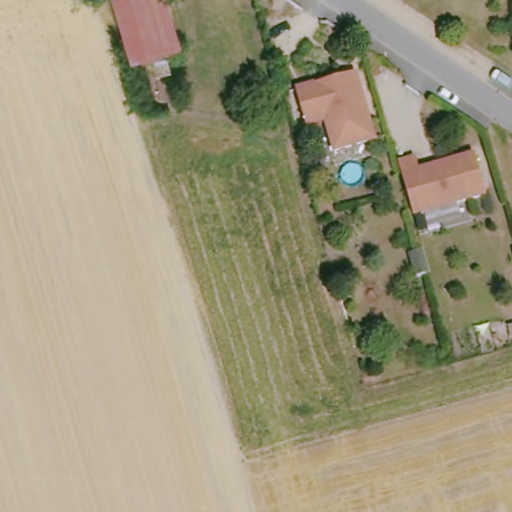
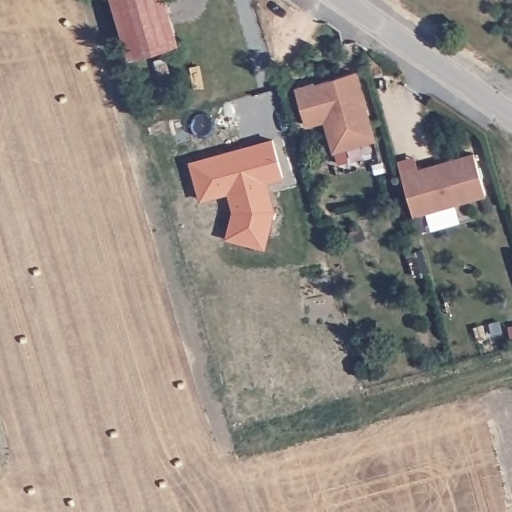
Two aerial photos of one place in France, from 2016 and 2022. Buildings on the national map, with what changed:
unchanged [(169,0),(182,42),(128,57),(111,0),(169,0)]
unchanged [(355,70),(372,137),(330,149),(321,117),(304,121),(295,86),(355,70)]
new [(226,241),(229,226),(234,213),(229,195),(200,203),(190,165),(272,142),(282,179),(262,185),(272,223),(267,238),(264,250),(226,241)]
unchanged [(397,167),(412,164),(414,166),(470,151),(482,192),(410,211),(397,167)]

